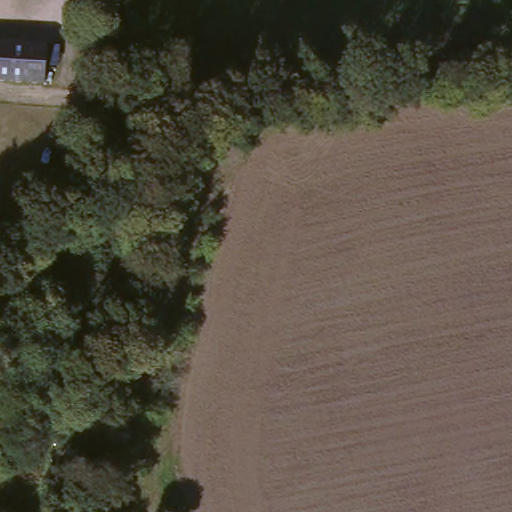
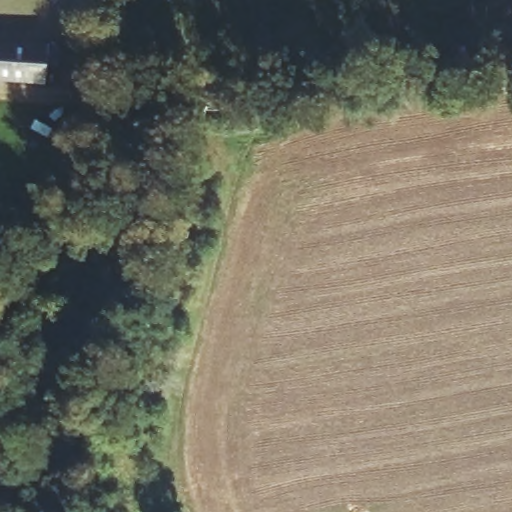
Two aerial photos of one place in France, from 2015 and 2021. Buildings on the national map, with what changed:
unchanged [(0,44),(51,49),(47,87),(0,82),(0,44)]

